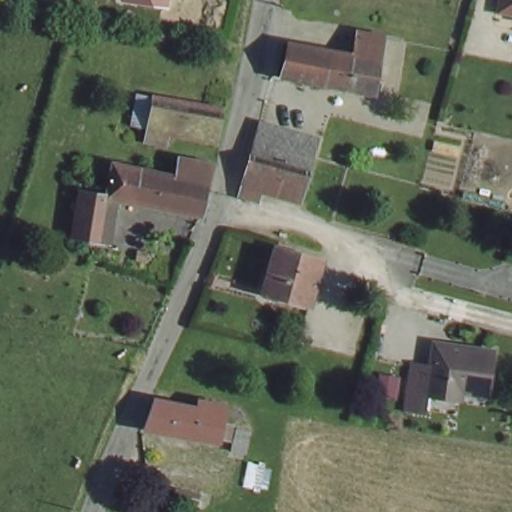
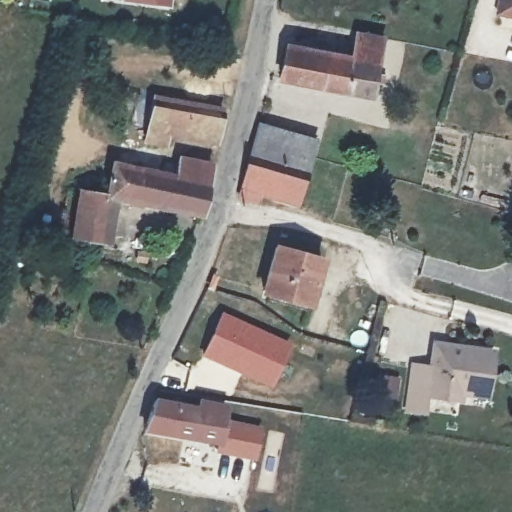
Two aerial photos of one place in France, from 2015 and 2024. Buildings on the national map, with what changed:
unchanged [(122,0),(167,0),(166,7),(122,0)]
unchanged [(498,15),(501,0),(512,0),(512,18),(498,15)]
unchanged [(353,56),(356,35),(385,39),(376,93),(326,87),(330,52),(353,56)]
unchanged [(326,87),(276,78),(281,42),(330,52),(326,87)]
unchanged [(214,146),(161,133),(156,147),(134,141),(151,92),(224,112),(214,146)]
unchanged [(249,157),(257,122),(305,134),(300,157),(298,167),(249,157)]
unchanged [(243,184),(249,157),(298,167),(293,193),(265,188),(261,205),(239,200),(243,184)]
unchanged [(203,223),(106,199),(117,164),(173,177),(182,163),(218,172),(203,223)]
unchanged [(91,245),(63,236),(77,192),(85,194),(106,199),(91,245)]
unchanged [(264,298),(269,256),(314,259),(306,304),(264,298)]
new [(221,311),(288,341),(271,388),(201,357),(221,311)]
unchanged [(426,399),(424,414),(407,412),(414,367),(432,369),(435,343),(489,354),(483,389),(482,399),(459,395),(457,405),(426,399)]
unchanged [(185,438),(139,433),(152,402),(190,406),(185,438)]
unchanged [(228,442),(216,441),(185,438),(190,406),(197,407),(199,403),(218,407),(218,421),(230,422),(228,442)]

